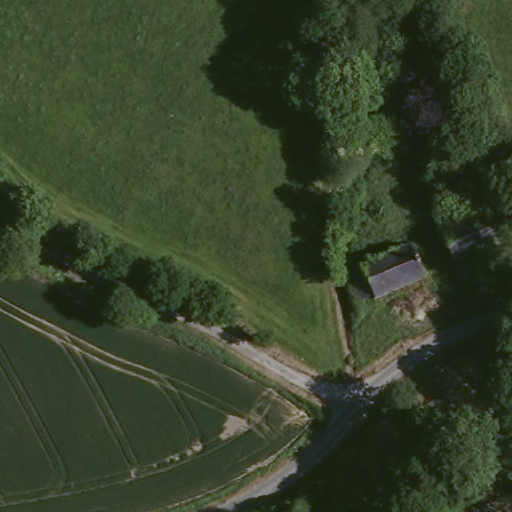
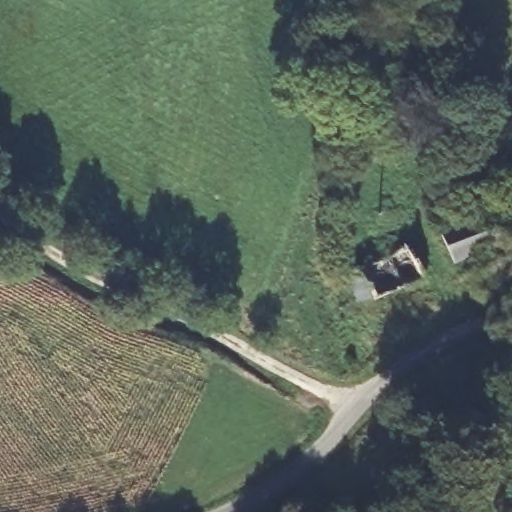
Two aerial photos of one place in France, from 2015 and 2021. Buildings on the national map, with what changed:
unchanged [(502,240),(453,259),(442,231),(440,226),(490,207),(502,240)]
unchanged [(353,268),(368,261),(419,240),(420,243),(433,275),(382,297),(381,291),(365,296),(353,268)]

